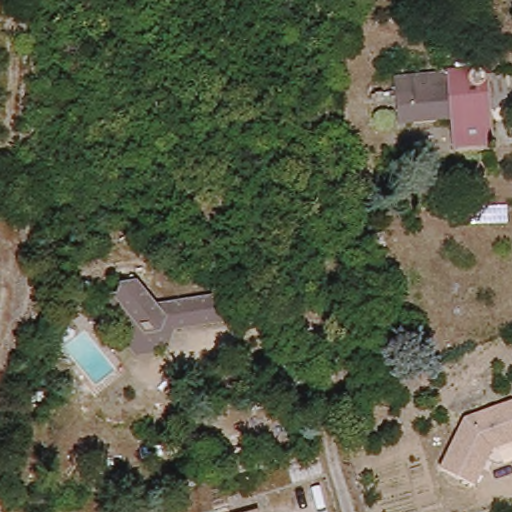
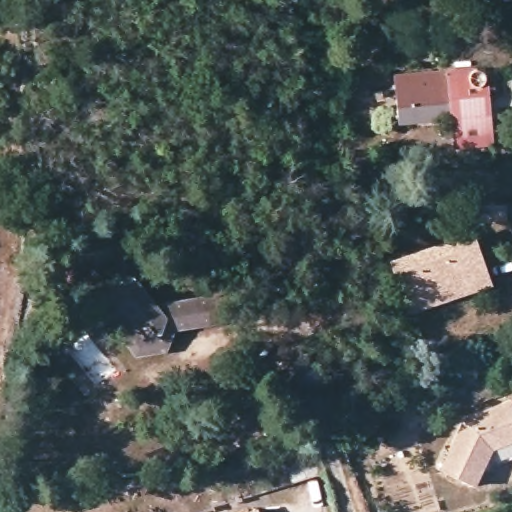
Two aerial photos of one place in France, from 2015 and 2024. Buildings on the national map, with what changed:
unchanged [(494,144),(453,151),(447,121),(413,125),(401,71),(485,60),(494,144)]
new [(494,284),(408,315),(388,260),(473,232),(494,284)]
unchanged [(233,307),(224,321),(175,326),(163,347),(136,350),(122,330),(128,321),(111,298),(116,290),(125,289),(129,282),(124,273),(139,271),(141,281),(158,303),(223,297),(233,307)]
unchanged [(512,398),(512,439),(495,444),(477,479),(444,463),(468,413),(512,398)]
unchanged [(334,483),(299,492),(291,461),(326,454),(334,483)]
unchanged [(257,512),(248,512),(256,510),(257,512)]

